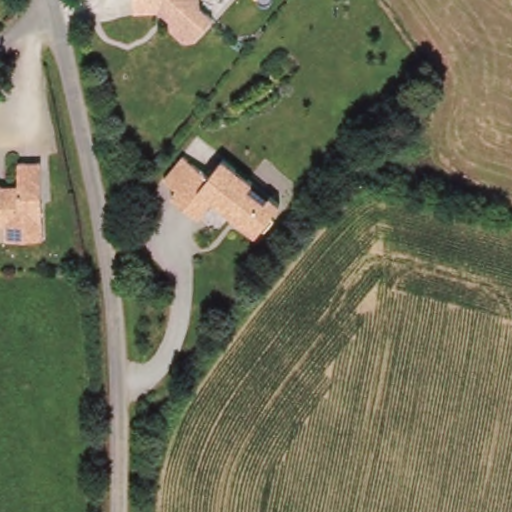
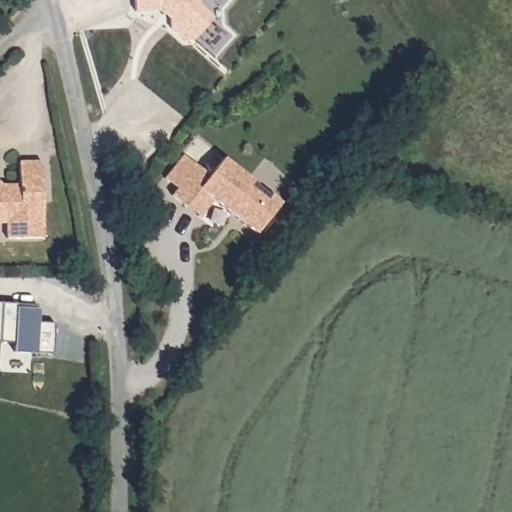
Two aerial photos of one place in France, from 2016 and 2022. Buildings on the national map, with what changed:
unchanged [(192,43),(180,44),(167,32),(168,24),(156,12),(134,13),(133,0),(197,0),(197,6),(209,18),(192,43)]
unchanged [(210,174),(222,160),(255,181),(249,190),(266,202),(271,198),(281,206),(256,237),(213,202),(199,220),(169,198),(177,189),(164,179),(181,156),(210,174)]
unchanged [(41,161),(40,239),(7,240),(6,224),(0,224),(0,188),(18,187),(17,161),(41,161)]
new [(12,306),(11,311),(34,312),(34,324),(51,325),(50,355),(11,354),(12,345),(0,345),(0,306),(12,306)]

